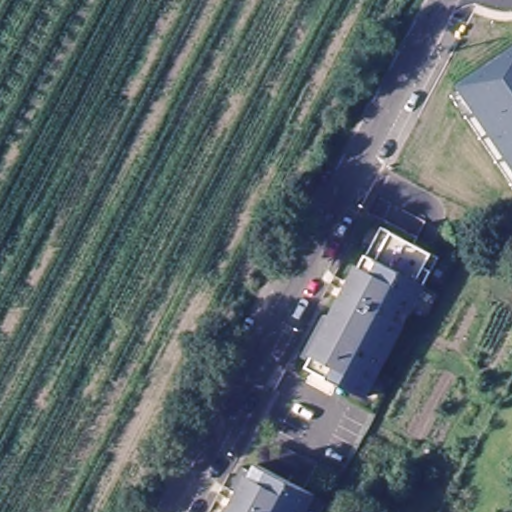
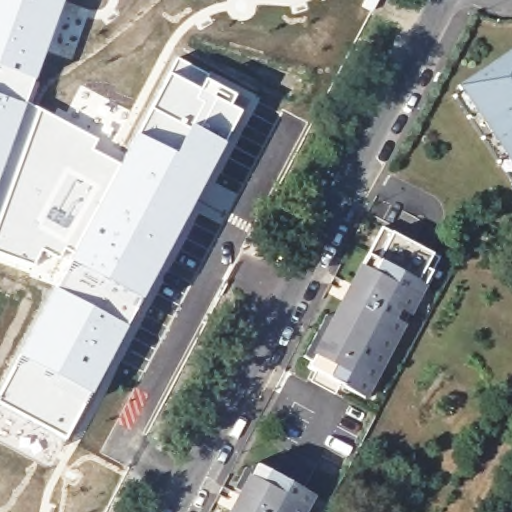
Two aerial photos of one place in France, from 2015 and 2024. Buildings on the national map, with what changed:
new [(65,0),(65,1),(47,51),(26,104),(5,171),(7,173),(7,174),(14,177),(0,218),(0,0),(65,0)]
unchanged [(461,90),(457,83),(512,48),(512,183),(453,94),(461,90)]
new [(14,177),(7,174),(7,173),(5,171),(26,104),(58,118),(99,140),(94,149),(117,161),(142,121),(176,56),(254,96),(246,110),(244,109),(107,366),(66,441),(0,404),(0,390),(22,344),(69,255),(64,252),(61,258),(42,250),(34,266),(0,252),(0,218),(14,177)]
unchanged [(367,398),(310,367),(313,360),(305,356),(327,315),(335,319),(383,227),(441,258),(412,313),(406,325),(367,398)]
unchanged [(304,512),(230,512),(254,467),(269,474),(278,455),(298,465),(288,484),(312,496),(304,512)]

